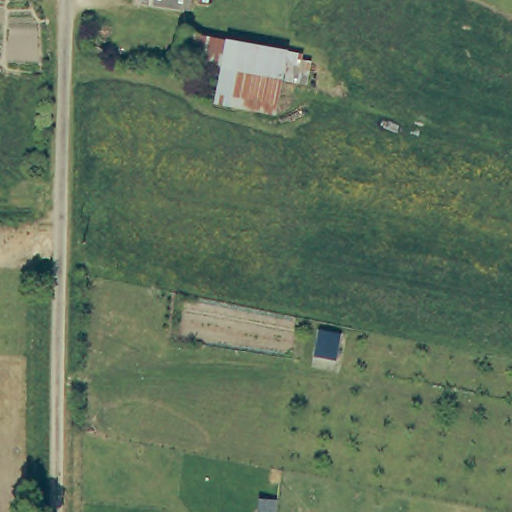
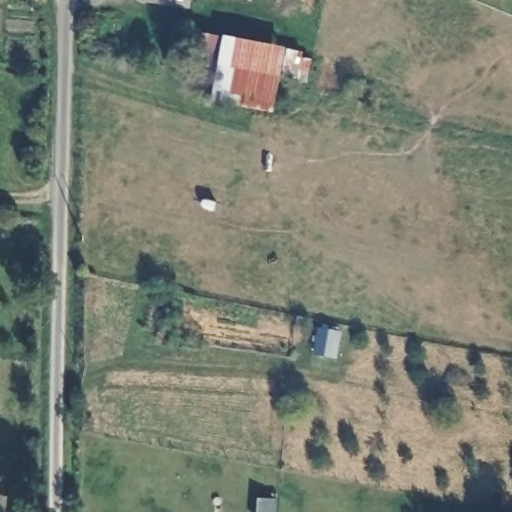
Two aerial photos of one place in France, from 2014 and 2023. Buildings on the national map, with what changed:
unchanged [(290,48),(282,107),(221,100),(225,65),(174,57),(184,30),(290,48)]

